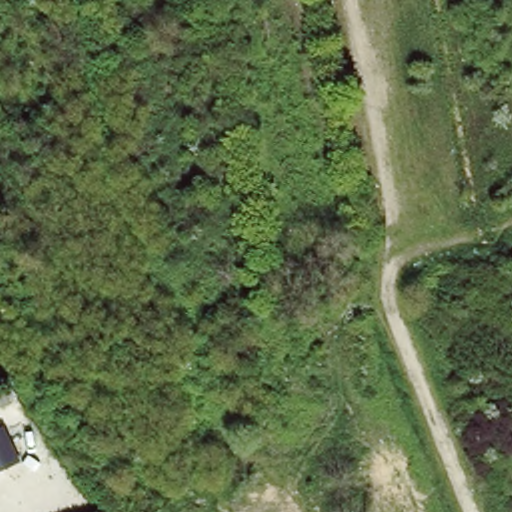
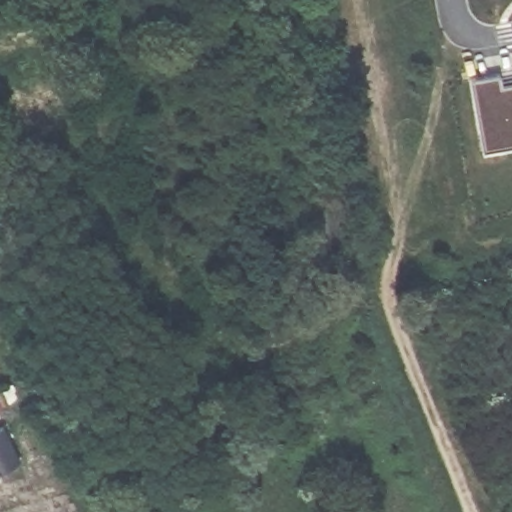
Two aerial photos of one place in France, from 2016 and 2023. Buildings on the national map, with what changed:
new [(488,149),(474,77),(502,72),(504,84),(512,83),(512,145),(488,149)]
unchanged [(0,426),(5,424),(21,460),(0,468),(0,426)]

